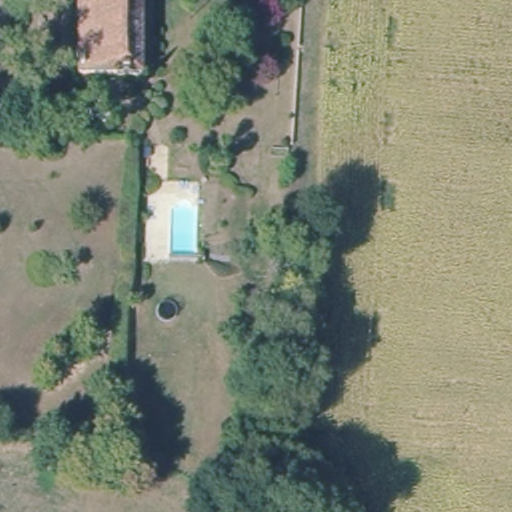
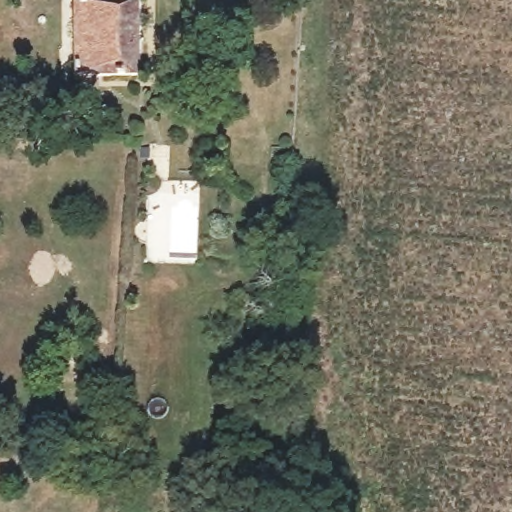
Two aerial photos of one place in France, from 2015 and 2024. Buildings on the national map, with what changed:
unchanged [(139,70),(91,69),(91,80),(79,79),(81,0),(140,0),(139,70)]

